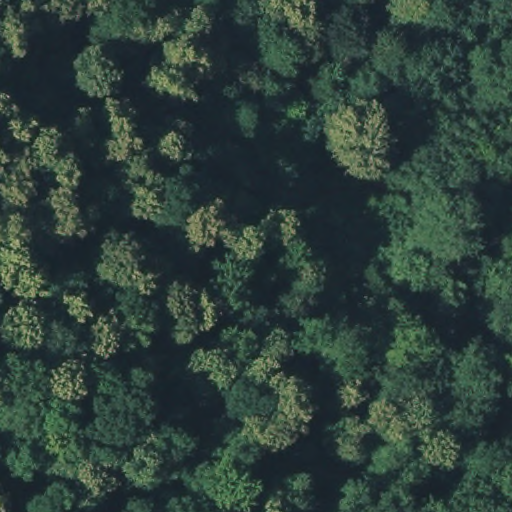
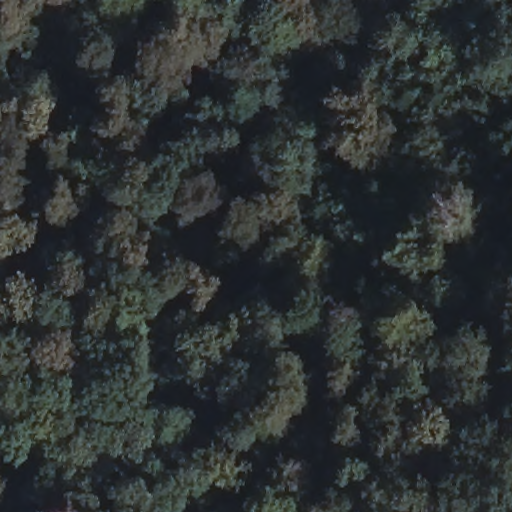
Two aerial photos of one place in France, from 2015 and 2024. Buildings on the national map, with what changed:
[]

